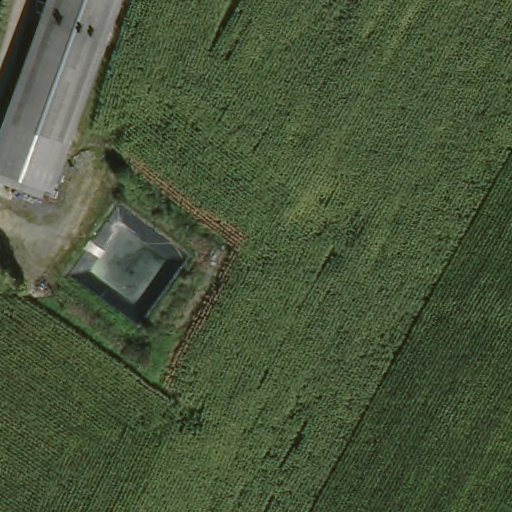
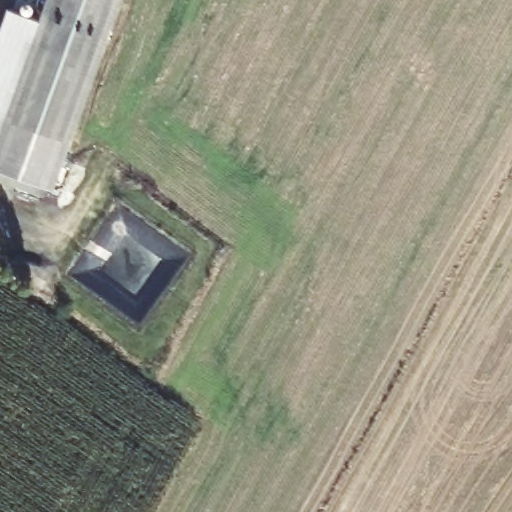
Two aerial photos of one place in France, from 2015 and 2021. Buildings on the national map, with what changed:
unchanged [(55,194),(0,176),(0,156),(53,0),(123,0),(55,194)]

